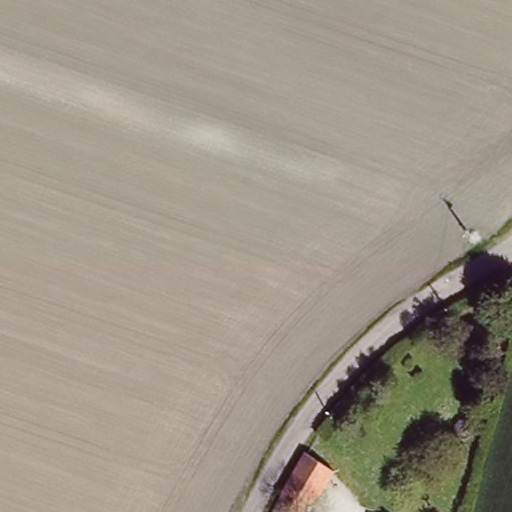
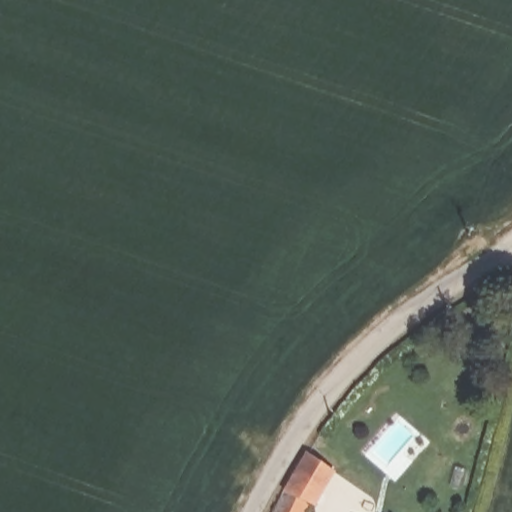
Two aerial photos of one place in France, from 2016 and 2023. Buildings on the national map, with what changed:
unchanged [(304,512),(275,512),(297,470),(306,456),(333,476),(310,509),(307,506),(304,512)]

